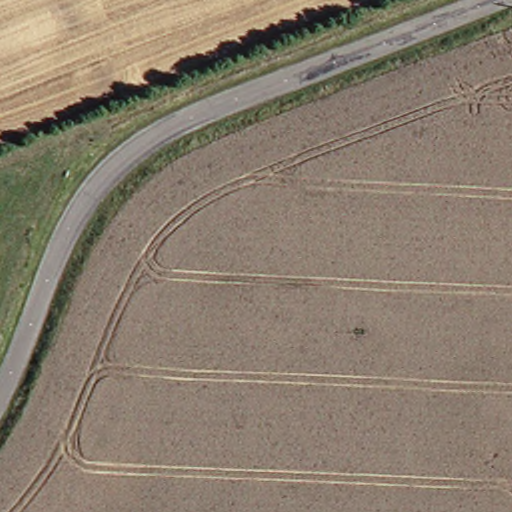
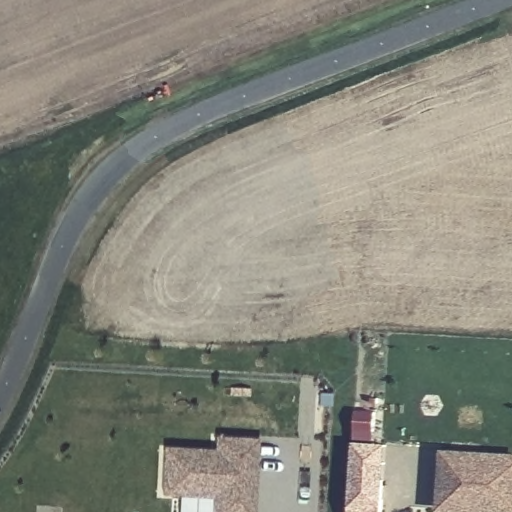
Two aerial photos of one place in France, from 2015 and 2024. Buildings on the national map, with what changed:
new [(353,445),(355,413),(376,414),(375,446),(353,445)]
new [(205,512),(206,496),(157,492),(160,450),(212,453),(213,441),(248,443),(245,473),(244,490),(243,512),(205,512)]
new [(349,512),(353,445),(375,446),(375,443),(386,445),(382,512),(349,512)]
new [(443,455),(512,460),(512,512),(505,512),(486,511),(461,508),(453,508),(439,507),(443,455)]

